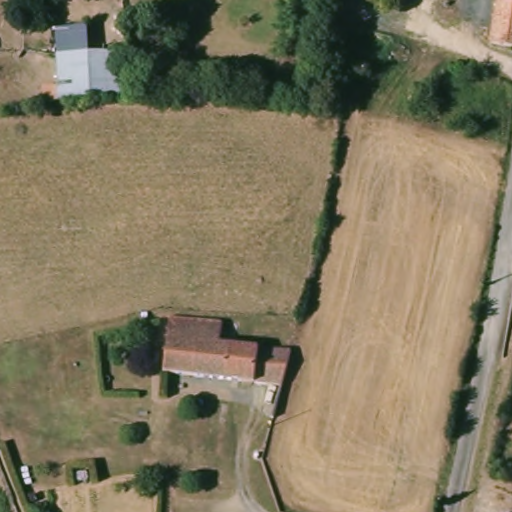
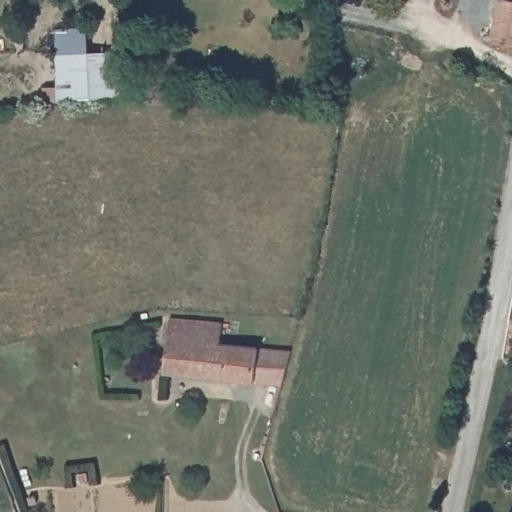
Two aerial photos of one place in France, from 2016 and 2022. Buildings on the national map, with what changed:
unchanged [(495,39),(503,0),(512,0),(512,44),(495,39)]
unchanged [(62,53),(129,47),(130,95),(62,99),(62,53)]
unchanged [(295,352),(288,386),(170,372),(175,317),(228,322),(227,328),(226,344),(295,351),(295,352)]

